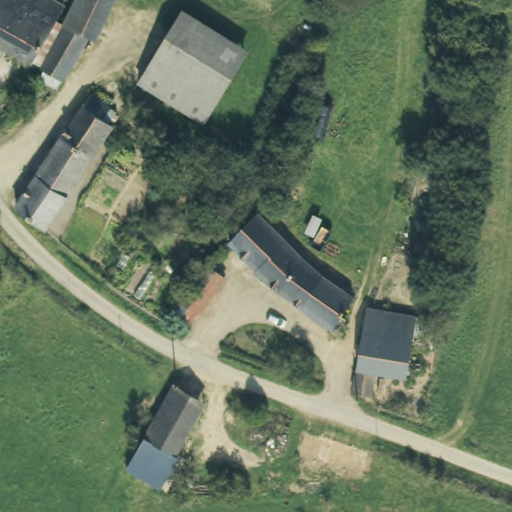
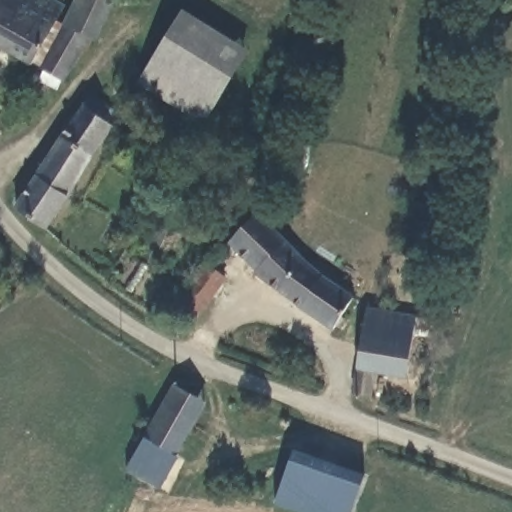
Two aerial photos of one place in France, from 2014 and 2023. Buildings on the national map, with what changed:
unchanged [(30,65),(0,48),(0,0),(46,0),(62,9),(30,65)]
unchanged [(63,25),(69,13),(75,0),(106,0),(87,37),(63,25)]
unchanged [(178,18),(243,56),(219,96),(154,58),(178,18)]
unchanged [(87,37),(64,82),(41,70),(63,25),(87,37)]
unchanged [(203,121),(139,83),(154,58),(219,96),(203,121)]
unchanged [(96,90),(114,101),(106,113),(117,120),(49,227),(21,202),(96,90)]
unchanged [(332,328),(284,295),(253,271),(256,269),(229,244),(256,214),(270,227),(311,268),(352,298),(332,328)]
unchanged [(212,260),(228,274),(182,327),(163,315),(212,260)]
unchanged [(406,381),(375,376),(371,401),(353,398),(366,314),(415,321),(406,381)]
unchanged [(143,438),(148,441),(175,387),(209,403),(165,490),(127,472),(143,438)]
new [(351,512),(295,512),(273,505),(293,450),(364,475),(351,512)]

